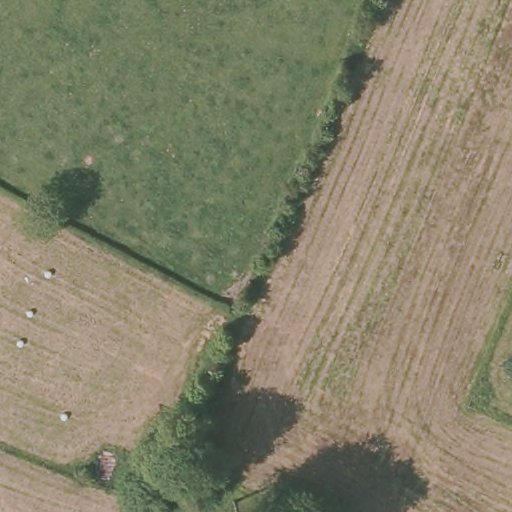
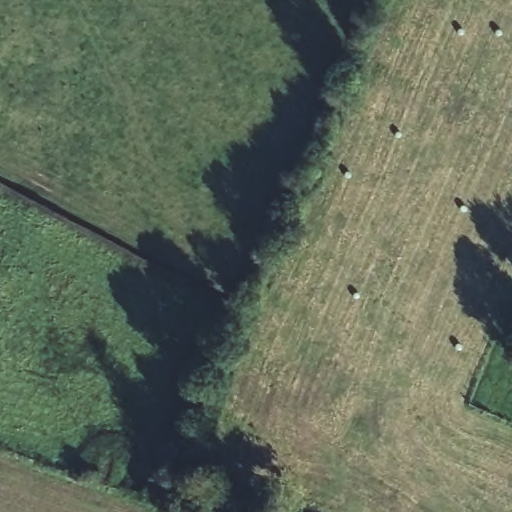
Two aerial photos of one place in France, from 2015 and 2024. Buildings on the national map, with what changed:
unchanged [(98,483),(103,464),(120,466),(116,488),(98,483)]

